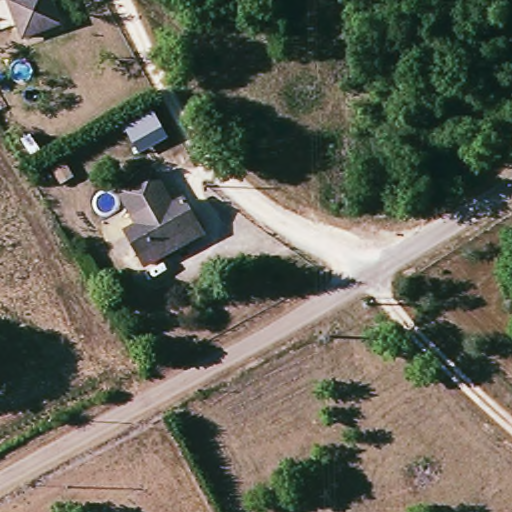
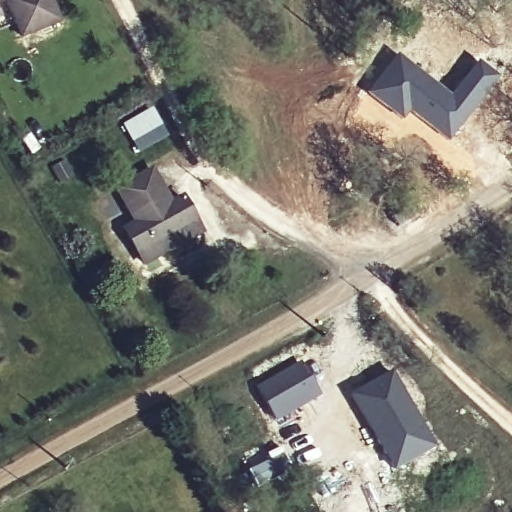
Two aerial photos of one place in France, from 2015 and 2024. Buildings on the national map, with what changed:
unchanged [(41,0),(46,19),(11,26),(5,0),(41,0)]
new [(397,54),(450,94),(477,60),(498,78),(448,143),(408,113),(402,120),(366,92),(397,54)]
unchanged [(202,234),(145,264),(126,227),(137,222),(119,185),(154,169),(171,203),(183,197),(202,234)]
new [(298,361),(320,396),(275,421),(255,386),(298,361)]
new [(393,369),(418,410),(435,447),(393,471),(348,393),(393,369)]

